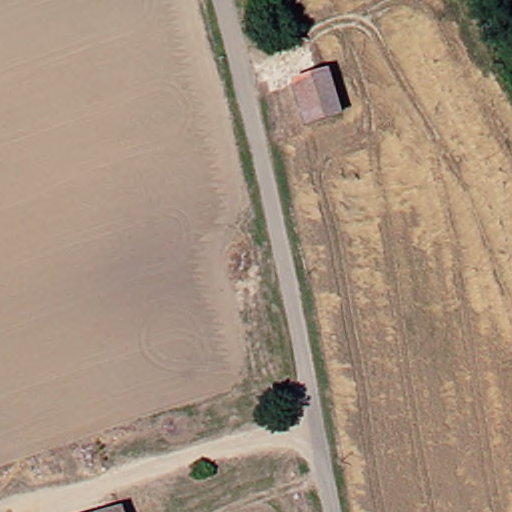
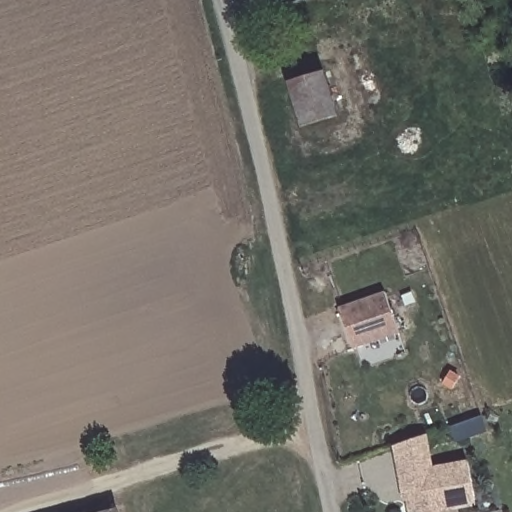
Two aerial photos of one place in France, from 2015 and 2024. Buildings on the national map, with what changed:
unchanged [(304,128),(290,84),(327,72),(340,116),(304,128)]
new [(399,334),(353,348),(338,306),(384,292),(399,334)]
new [(468,460),(477,506),(442,512),(409,512),(406,501),(403,502),(396,460),(353,473),(349,459),(392,446),(428,434),(434,466),(468,460)]
unchanged [(95,512),(121,504),(124,512),(95,512)]

